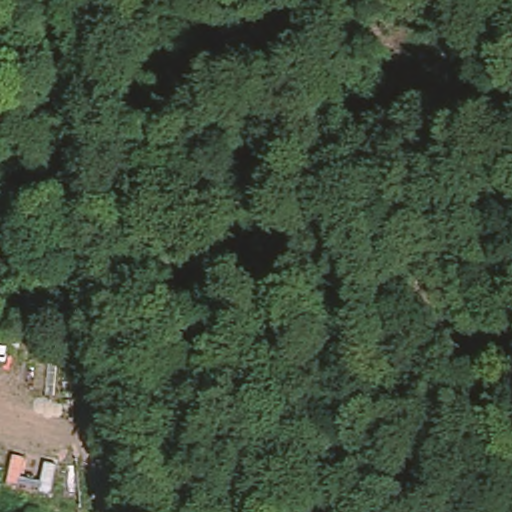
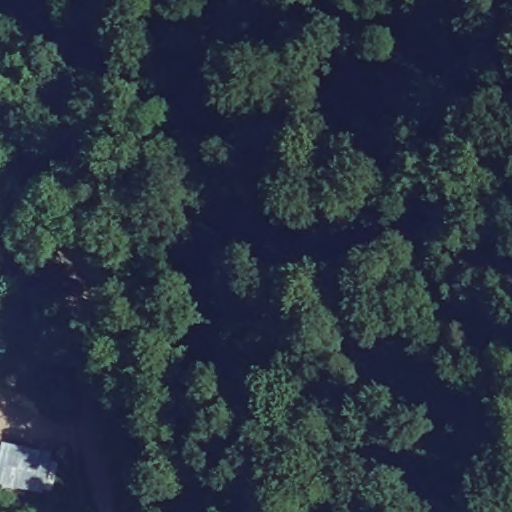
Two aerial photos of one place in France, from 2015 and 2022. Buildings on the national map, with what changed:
new [(49,464),(58,466),(52,496),(43,494),(42,498),(0,489),(0,450),(0,447),(50,457),(49,464)]

